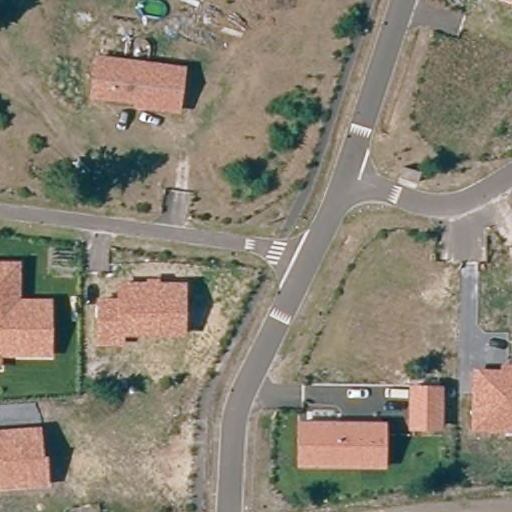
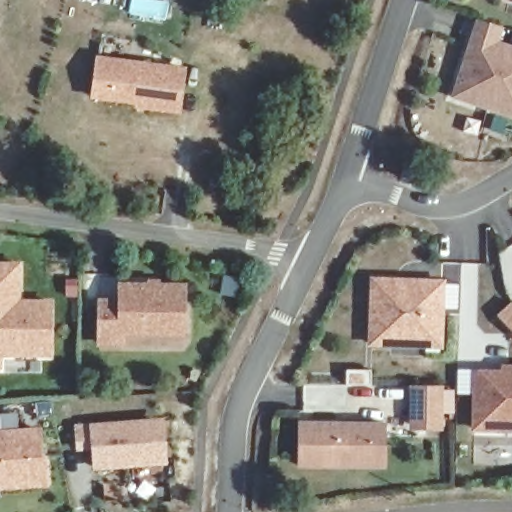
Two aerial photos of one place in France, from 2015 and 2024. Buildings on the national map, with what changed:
unchanged [(512,0),(512,1),(508,0),(512,0)]
new [(476,16),(505,25),(501,41),(512,44),(512,117),(452,96),(476,16)]
unchanged [(187,66),(181,112),(132,107),(133,103),(89,97),(98,54),(187,66)]
unchanged [(22,263),(21,299),(53,300),(54,358),(1,358),(1,370),(0,370),(0,263),(22,263)]
new [(444,347),(369,345),(370,275),(447,278),(444,347)]
unchanged [(97,299),(118,300),(118,282),(187,283),(186,337),(125,337),(125,348),(97,346),(97,299)]
new [(512,332),(496,315),(512,300),(512,332)]
unchanged [(500,370),(500,365),(512,365),(512,433),(471,432),(472,369),(500,370)]
unchanged [(408,430),(407,385),(444,387),(444,431),(408,430)]
unchanged [(296,468),(297,420),(388,422),(386,470),(296,468)]
new [(160,421),(163,463),(99,468),(97,441),(82,442),(80,427),(160,421)]
unchanged [(41,427),(44,456),(49,456),(50,487),(0,491),(0,431),(41,427)]

